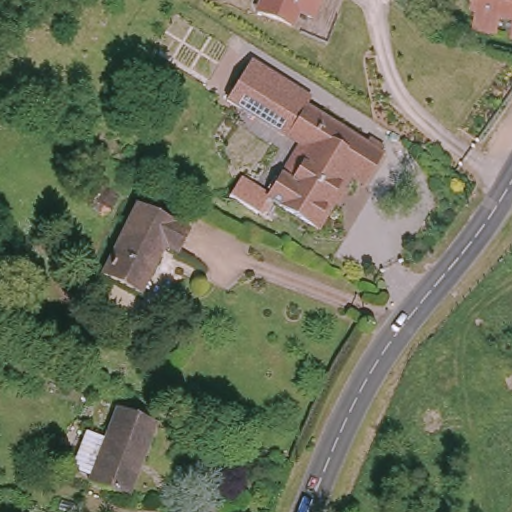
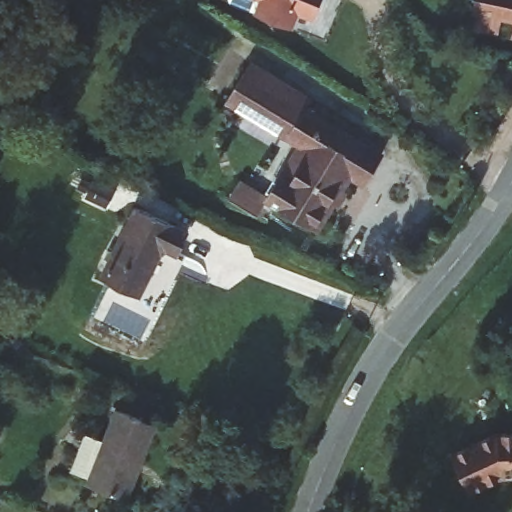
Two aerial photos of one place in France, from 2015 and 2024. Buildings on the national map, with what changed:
unchanged [(295,7),(289,22),(255,9),(258,0),(315,0),(310,13),(295,7)]
unchanged [(498,30),(475,25),(479,8),(480,0),(512,0),(512,16),(502,13),(498,30)]
unchanged [(311,95),(303,109),(286,136),(226,101),(250,60),(311,95)]
unchanged [(350,176),(341,190),(337,187),(329,200),(333,203),(317,229),(267,198),(281,176),(300,145),(286,136),(304,107),(381,154),(363,184),(350,176)]
unchanged [(269,195),(267,198),(257,214),(228,198),(240,179),(269,195)]
unchanged [(132,199),(184,224),(172,246),(158,239),(135,288),(98,270),(132,199)]
unchanged [(93,480),(78,473),(91,440),(107,444),(120,412),(160,428),(145,466),(141,465),(127,500),(91,485),(93,480)]
new [(501,431),(512,430),(512,473),(502,473),(472,490),(455,452),(501,431)]

